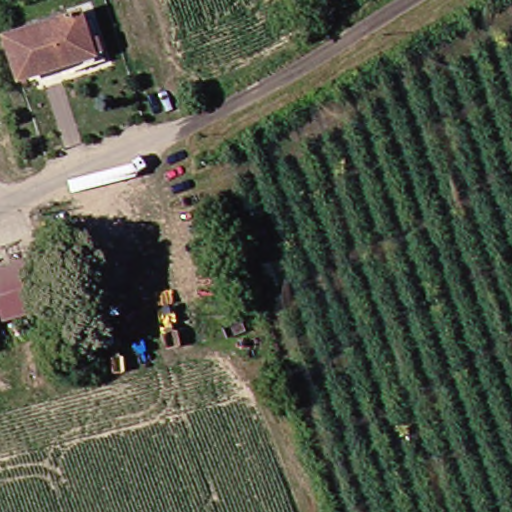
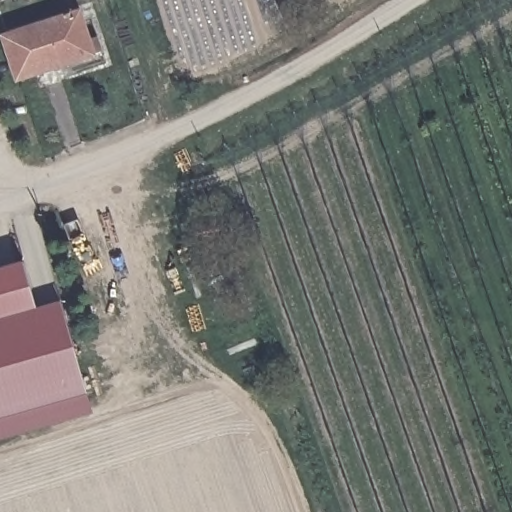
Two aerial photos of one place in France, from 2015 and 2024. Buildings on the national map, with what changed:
unchanged [(71,4),(79,17),(88,13),(108,57),(68,77),(61,64),(22,85),(2,41),(71,4)]
new [(40,309),(0,319),(0,268),(28,260),(40,309)]
new [(65,302),(91,393),(0,419),(0,319),(40,309),(65,302)]

